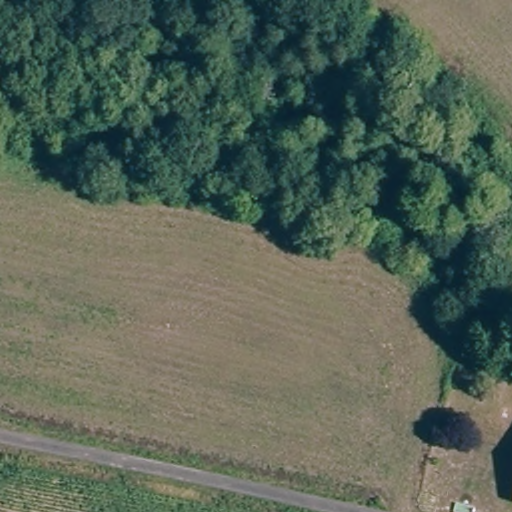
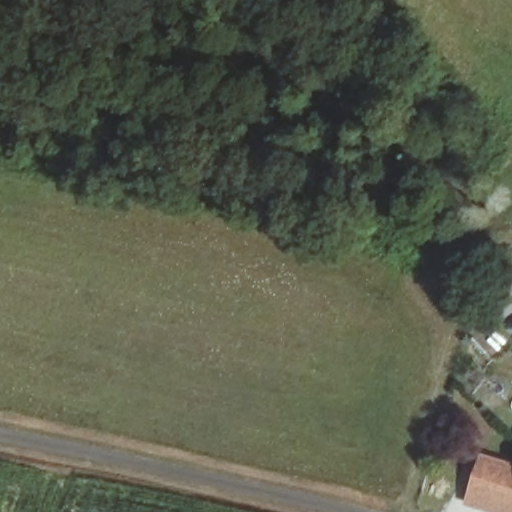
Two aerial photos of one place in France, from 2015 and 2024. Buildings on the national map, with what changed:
new [(465,505),(481,452),(512,462),(512,512),(487,512),(465,505)]

